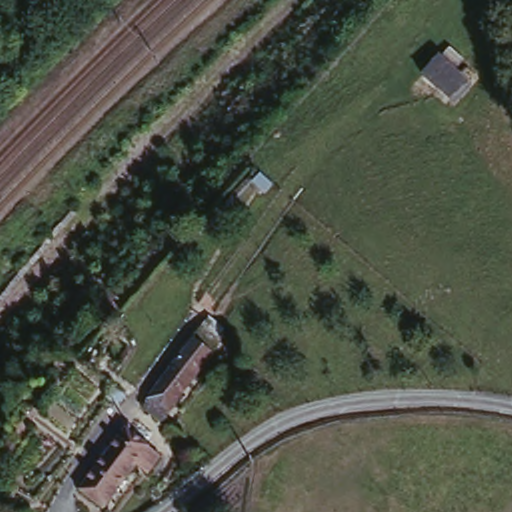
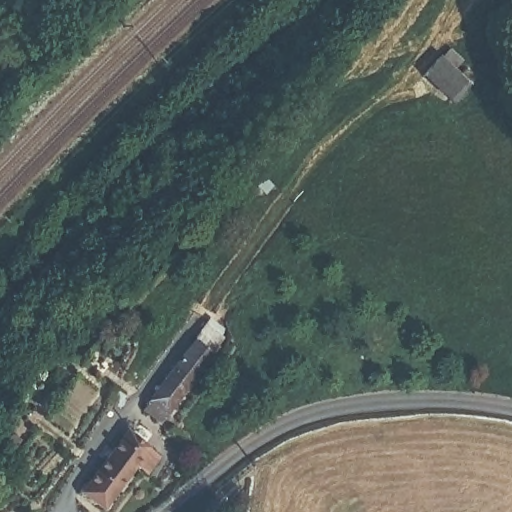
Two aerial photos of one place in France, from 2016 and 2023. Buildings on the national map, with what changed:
unchanged [(439,55),(460,74),(471,83),(454,102),(443,91),(422,75),(439,55)]
unchanged [(227,337),(165,416),(144,400),(207,322),(227,337)]
unchanged [(125,429),(155,448),(140,469),(126,459),(95,499),(80,486),(125,429)]

